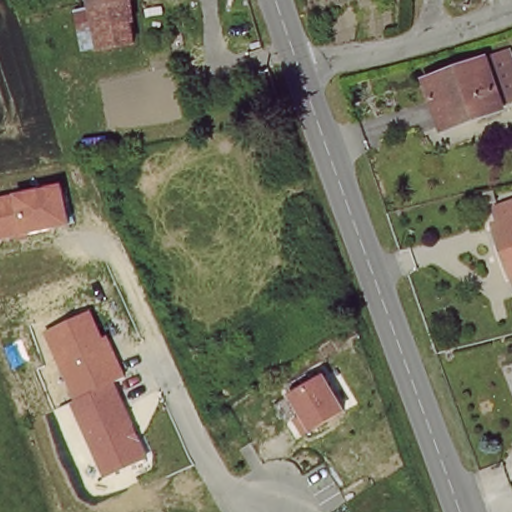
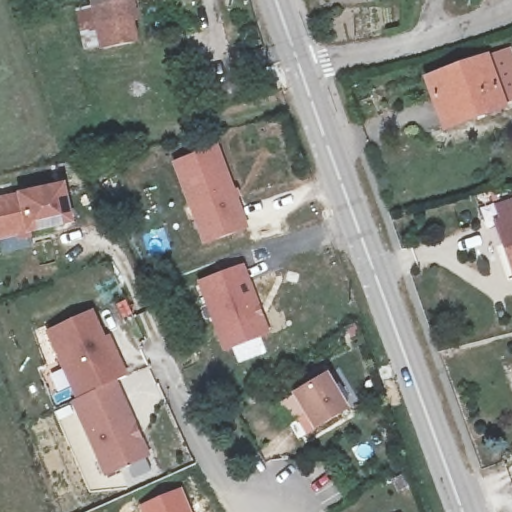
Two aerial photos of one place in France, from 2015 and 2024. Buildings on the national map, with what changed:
unchanged [(86,0),(132,0),(134,7),(89,13),(86,0)]
unchanged [(138,41),(81,50),(77,29),(92,28),(89,13),(134,7),(138,41)]
unchanged [(493,51),(494,58),(512,50),(512,100),(506,102),(507,110),(443,133),(423,79),(493,51)]
new [(217,145),(248,229),(202,245),(172,164),(217,145)]
unchanged [(0,241),(0,199),(21,194),(66,184),(77,224),(28,234),(0,241)]
unchanged [(497,215),(512,210),(512,260),(497,215)]
new [(242,265),(269,335),(223,353),(197,283),(242,265)]
unchanged [(94,310),(106,338),(111,335),(130,376),(118,381),(153,456),(106,476),(73,402),(77,400),(48,330),(94,310)]
unchanged [(295,396),(330,374),(350,409),(317,431),(295,396)]
new [(182,487),(192,512),(139,512),(137,505),(182,487)]

